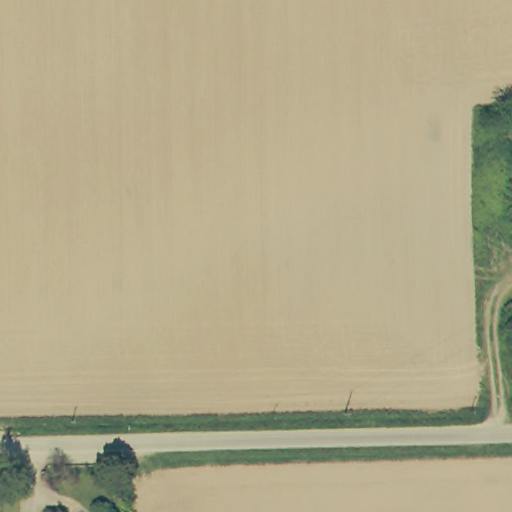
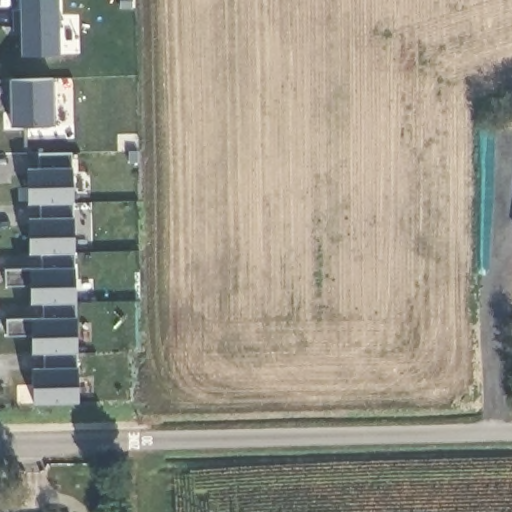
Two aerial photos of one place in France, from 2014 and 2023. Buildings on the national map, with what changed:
new [(53,125),(10,126),(9,79),(52,78),(53,125)]
new [(69,166),(74,166),(74,201),(69,202),(69,217),(74,217),(74,252),(36,252),(28,252),(28,216),(38,216),(39,203),(28,203),(28,166),(39,166),(38,154),(71,153),(69,166)]
new [(39,303),(29,302),(29,287),(5,288),(4,269),(37,267),(36,252),(74,252),(75,303),(39,303)]
new [(31,402),(31,367),(39,367),(39,352),(31,351),(31,335),(4,334),(4,317),(30,317),(41,317),(39,303),(75,303),(76,316),(77,401),(31,402)]

